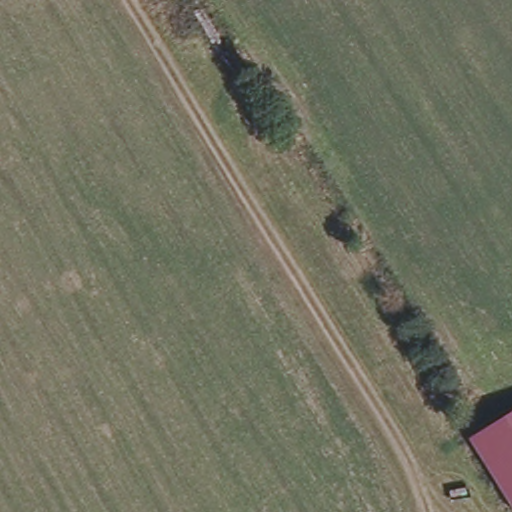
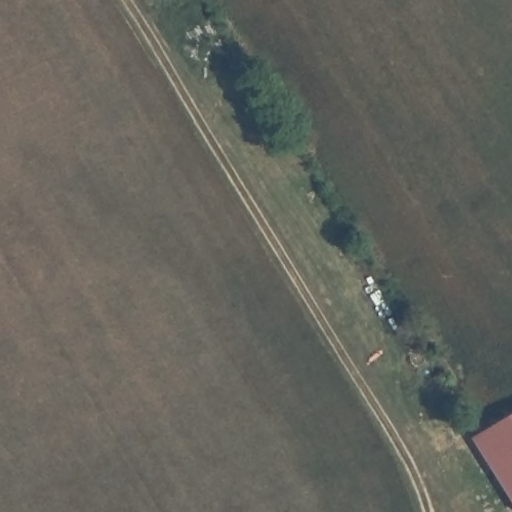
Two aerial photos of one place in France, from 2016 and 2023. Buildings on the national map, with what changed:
unchanged [(512,511),(465,440),(512,412),(512,511)]

